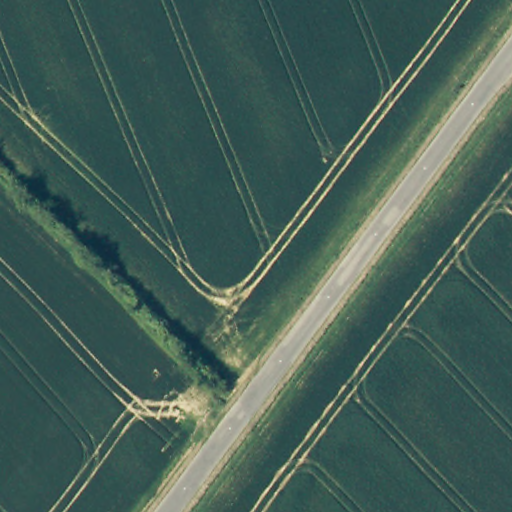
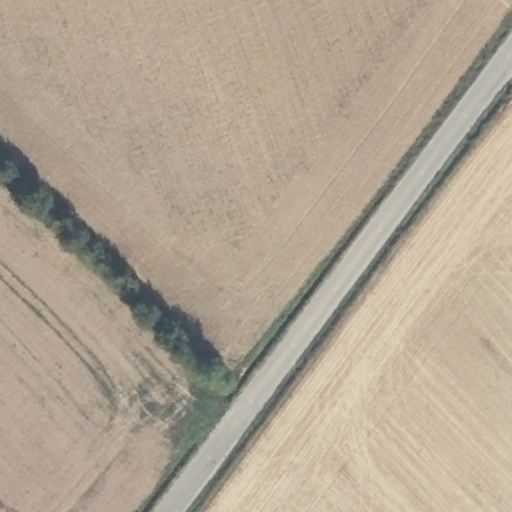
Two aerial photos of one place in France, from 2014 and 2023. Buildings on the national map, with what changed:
[]

